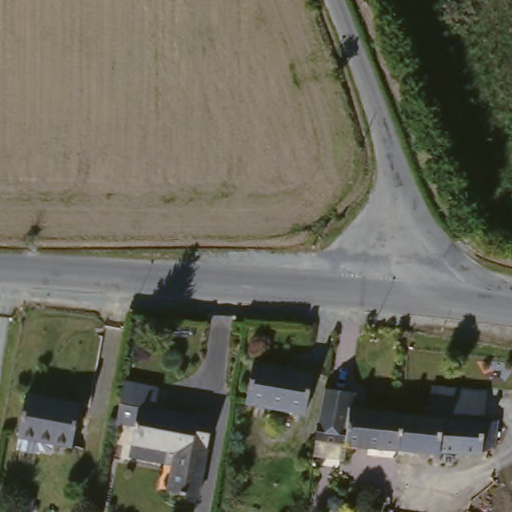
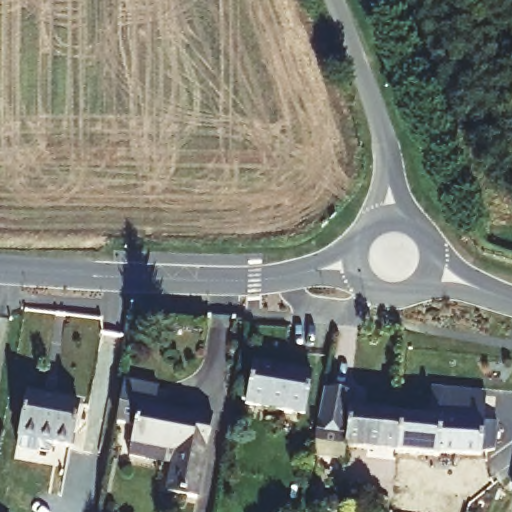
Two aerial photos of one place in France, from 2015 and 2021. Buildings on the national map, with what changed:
unchanged [(317,368),(311,405),(252,395),(258,357),(317,368)]
unchanged [(164,385),(161,409),(214,412),(201,493),(172,490),(172,464),(133,454),(136,430),(122,425),(127,380),(164,385)]
unchanged [(486,385),(485,415),(428,410),(428,380),(486,385)]
unchanged [(492,442),(478,452),(435,449),(412,447),(401,446),(385,444),(314,436),(317,418),(323,385),(350,388),(348,399),(347,405),(390,408),(404,410),(471,420),(496,419),(492,442)]
unchanged [(87,400),(78,442),(25,427),(35,388),(87,400)]

